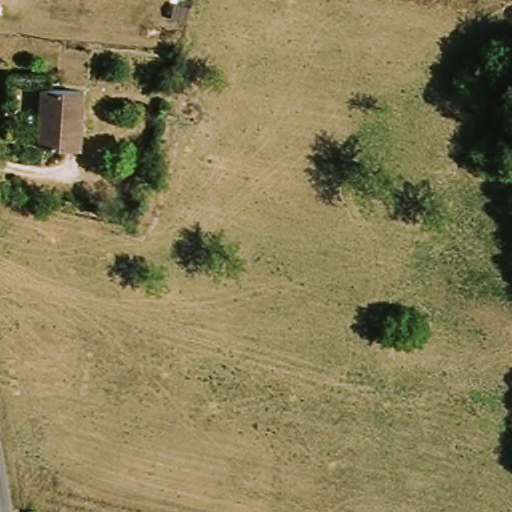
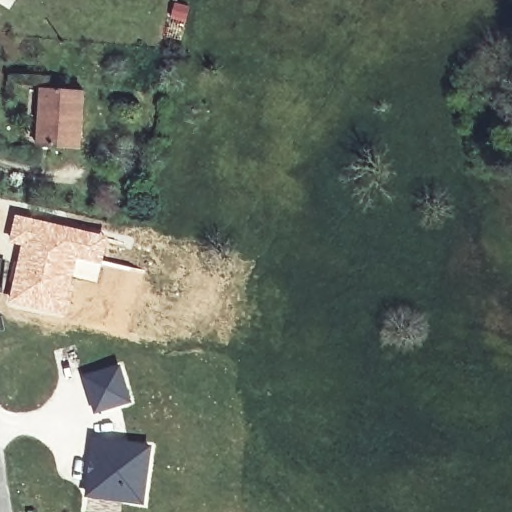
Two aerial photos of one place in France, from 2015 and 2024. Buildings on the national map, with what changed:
unchanged [(82,88),(75,144),(35,139),(41,83),(82,88)]
new [(20,245),(8,241),(15,213),(110,236),(96,283),(72,277),(63,317),(7,305),(20,245)]
new [(0,272),(0,259),(2,259),(0,272)]
new [(130,399),(95,410),(85,377),(121,365),(130,399)]
new [(143,502),(88,493),(95,438),(151,446),(143,502)]

